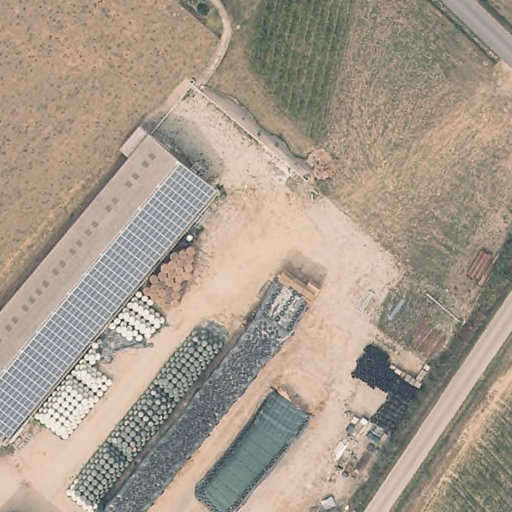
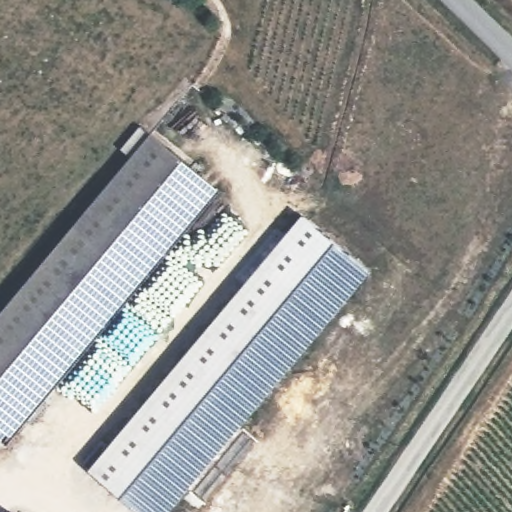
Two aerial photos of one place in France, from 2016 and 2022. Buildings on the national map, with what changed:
unchanged [(11,437),(8,433),(0,443),(0,312),(129,159),(120,149),(140,127),(148,135),(152,132),(218,189),(11,437)]
new [(369,270),(168,512),(140,512),(88,468),(300,213),(369,270)]

